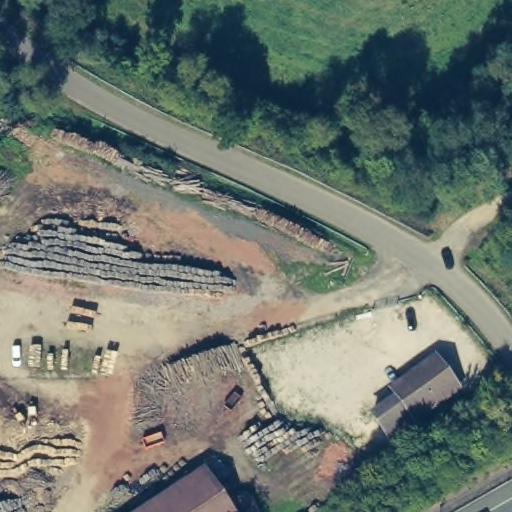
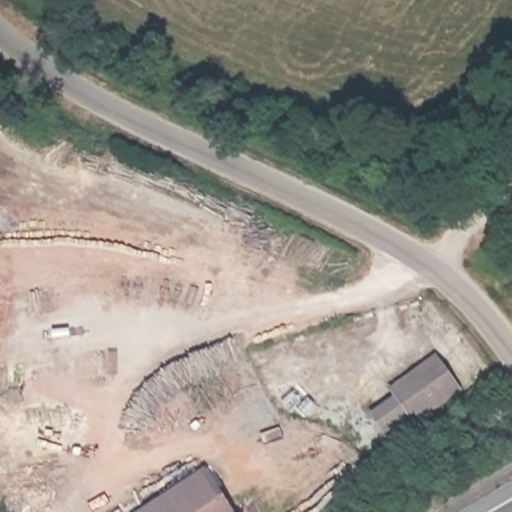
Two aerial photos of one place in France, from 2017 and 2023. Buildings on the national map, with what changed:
unchanged [(392,447),(368,408),(391,395),(387,386),(438,352),(465,391),(392,447)]
unchanged [(207,469),(233,512),(140,512),(207,469)]

